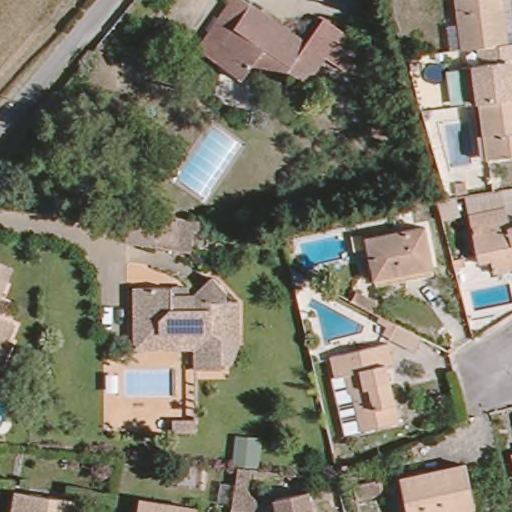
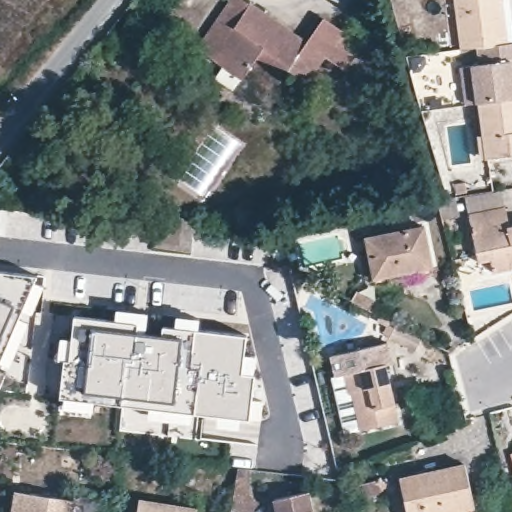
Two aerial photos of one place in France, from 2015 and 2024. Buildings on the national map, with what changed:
unchanged [(342,32),(336,41),(355,56),(345,69),(326,56),(307,82),(289,70),(280,82),(253,64),(241,78),(199,48),(231,1),(231,0),(245,0),(303,40),(320,17),(342,32)]
unchanged [(450,50),(447,25),(460,23),(456,0),(510,0),(512,15),(512,43),(473,48),(450,50)]
unchanged [(477,101),(465,104),(460,67),(476,65),(473,48),(512,43),(512,97),(477,101)]
unchanged [(486,158),(477,101),(512,97),(512,154),(486,158)]
unchanged [(494,267),(492,255),(480,257),(470,209),(506,202),(510,221),(512,220),(512,263),(494,267)]
new [(0,206),(9,207),(5,236),(0,236),(0,206)]
unchanged [(366,238),(424,227),(433,267),(375,278),(374,275),(366,277),(362,256),(370,254),(366,238)]
demolished [(191,250),(155,245),(156,229),(193,233),(191,250)]
unchanged [(293,282),(289,263),(305,272),(304,278),(293,282)]
new [(0,362),(0,272),(37,275),(0,362)]
demolished [(204,328),(165,330),(165,319),(147,319),(146,284),(175,282),(176,295),(200,293),(207,273),(228,283),(230,292),(241,292),(245,324),(226,326),(229,352),(206,354),(205,338),(204,328)]
demolished [(0,295),(0,280),(5,282),(0,295)]
unchanged [(379,302),(375,311),(354,299),(359,291),(379,302)]
new [(196,413),(60,398),(65,361),(69,361),(75,316),(247,337),(243,374),(255,376),(249,419),(196,413)]
demolished [(3,339),(12,343),(3,365),(0,364),(0,322),(8,326),(3,339)]
unchanged [(386,338),(392,326),(398,329),(392,342),(386,338)]
unchanged [(394,367),(386,369),(399,425),(350,437),(332,361),(389,347),(394,367)]
new [(238,469),(250,470),(246,492),(258,505),(253,512),(231,512),(235,490),(238,469)]
unchanged [(481,511),(476,512),(413,512),(407,483),(471,469),(481,511)]
unchanged [(77,512),(18,512),(20,492),(78,500),(77,512)]
unchanged [(196,512),(138,512),(140,501),(196,509),(196,512)]
unchanged [(318,508),(319,512),(297,512),(318,508)]

